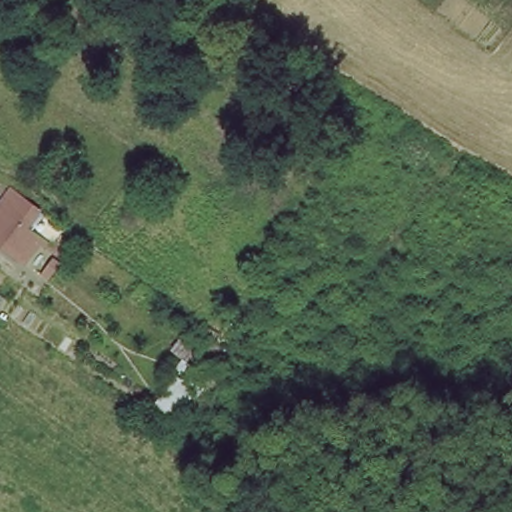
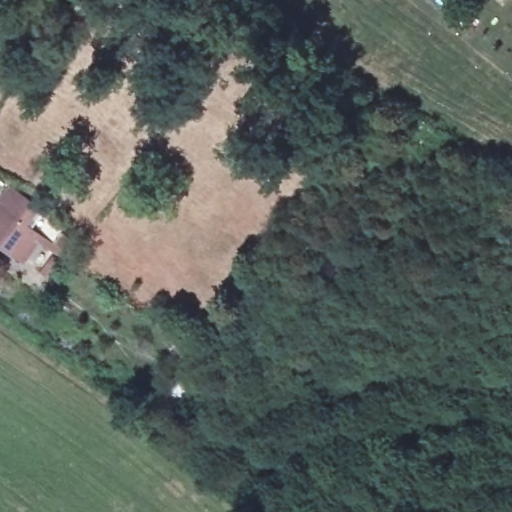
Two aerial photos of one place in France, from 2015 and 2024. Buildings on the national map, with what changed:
unchanged [(43,242),(31,234),(17,257),(0,245),(0,192),(52,227),(58,231),(54,249),(43,242)]

